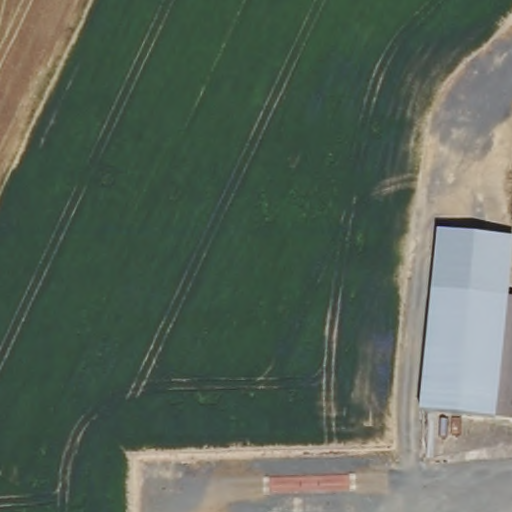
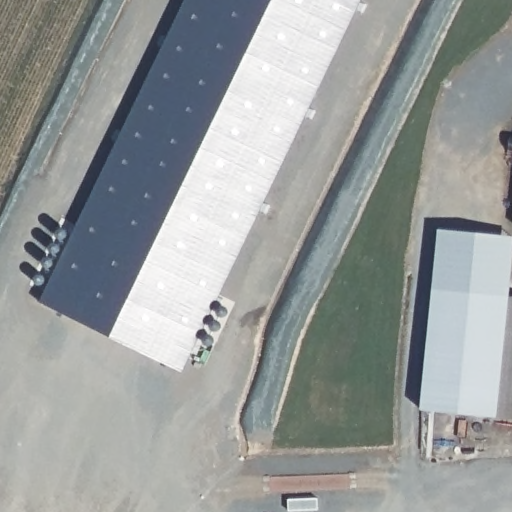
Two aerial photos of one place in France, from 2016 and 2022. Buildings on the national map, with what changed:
new [(42,302),(186,0),(361,0),(184,369),(42,302)]
unchanged [(512,235),(512,300),(439,290),(442,229),(512,235)]
unchanged [(439,290),(512,300),(512,417),(426,408),(439,290)]

